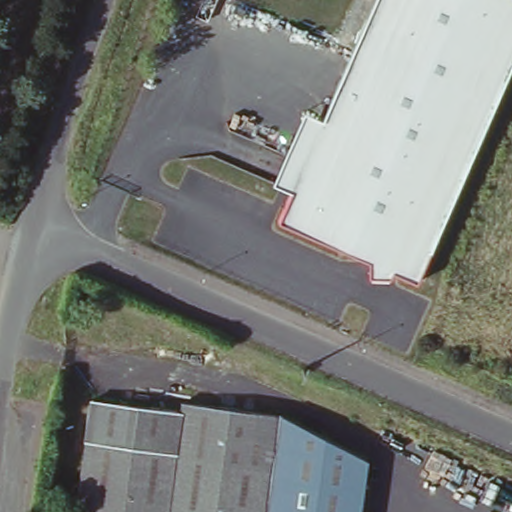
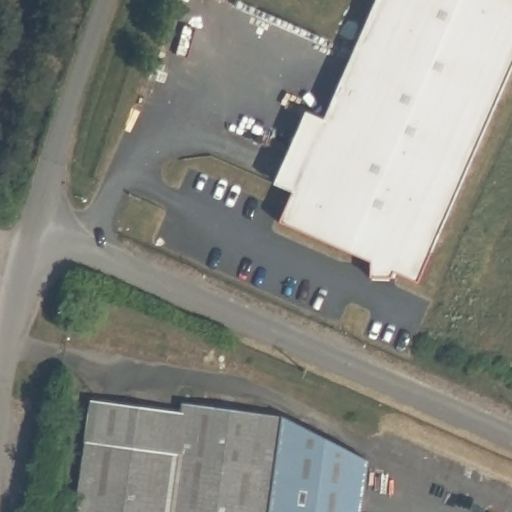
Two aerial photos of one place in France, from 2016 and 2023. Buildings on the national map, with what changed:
unchanged [(512,67),(420,278),(394,267),(393,279),(372,277),(372,258),(283,218),(295,190),(273,182),(303,108),(325,116),(376,0),(512,0),(512,67)]
unchanged [(179,414),(179,405),(278,417),(368,465),(362,512),(74,512),(90,400),(179,414)]

